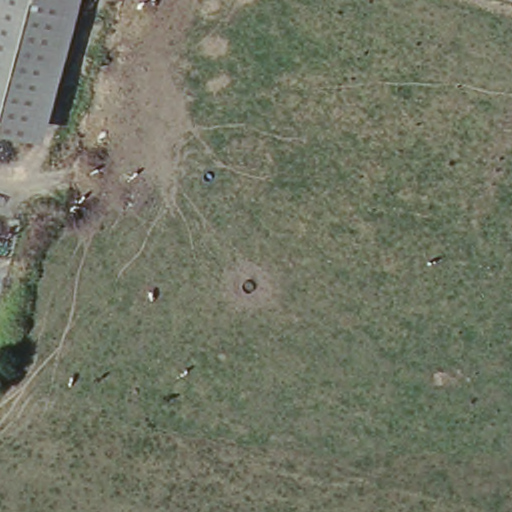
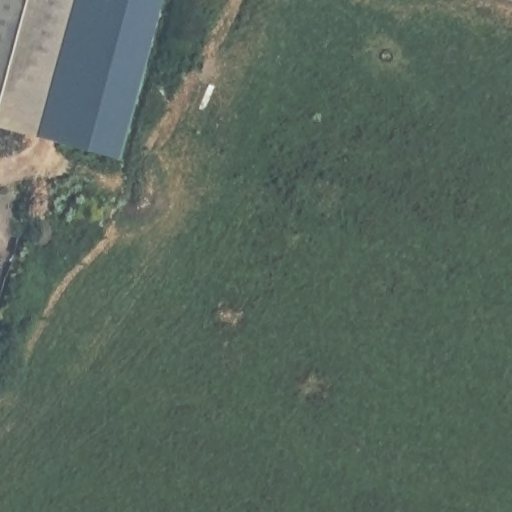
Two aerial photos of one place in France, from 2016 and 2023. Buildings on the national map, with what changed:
unchanged [(76,0),(35,140),(0,129),(0,18),(5,0),(76,0)]
new [(36,137),(76,0),(165,0),(121,160),(36,137)]

